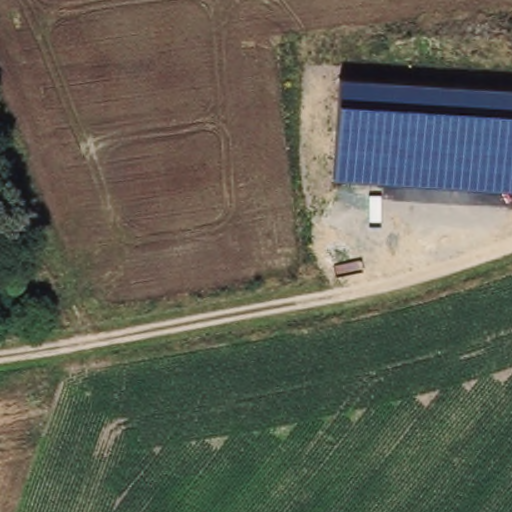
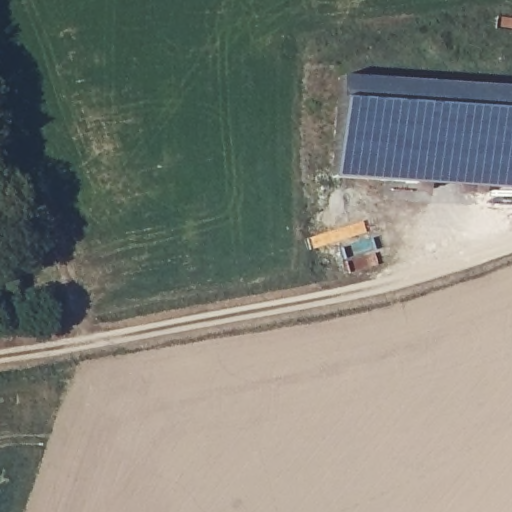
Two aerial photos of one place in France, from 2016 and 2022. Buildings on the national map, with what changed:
unchanged [(512,89),(512,190),(332,179),(338,78),(512,89)]

